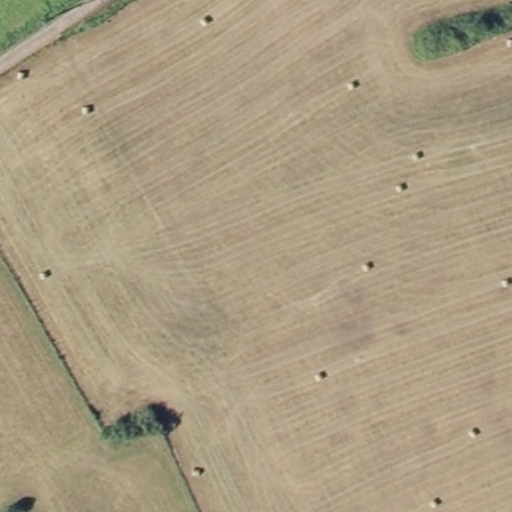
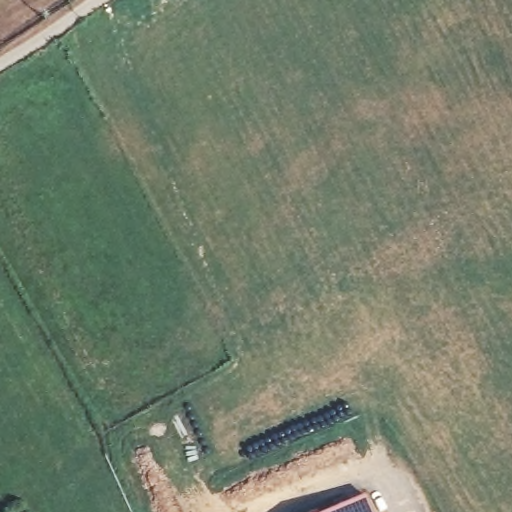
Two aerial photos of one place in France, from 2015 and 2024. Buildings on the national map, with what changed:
new [(329,512),(365,496),(373,512),(329,512)]

